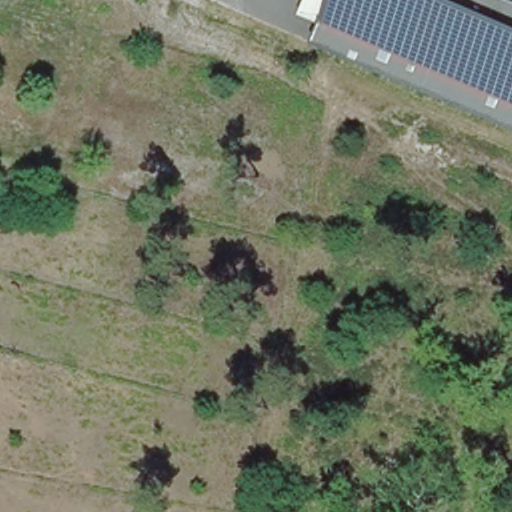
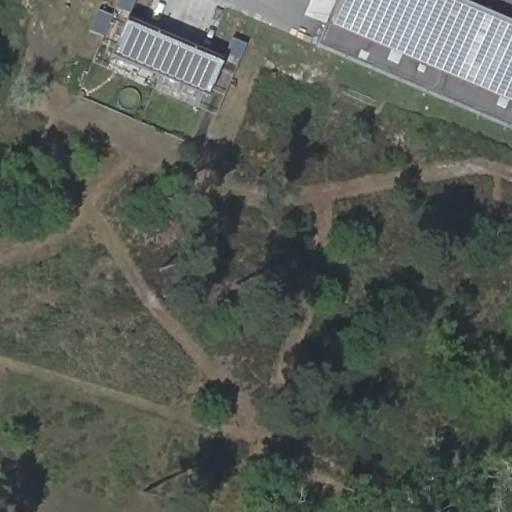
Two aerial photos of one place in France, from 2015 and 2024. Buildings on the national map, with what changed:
unchanged [(512,0),(512,127),(317,42),(324,28),(307,21),(315,0),(512,0)]
new [(113,54),(127,22),(220,62),(206,94),(113,54)]

